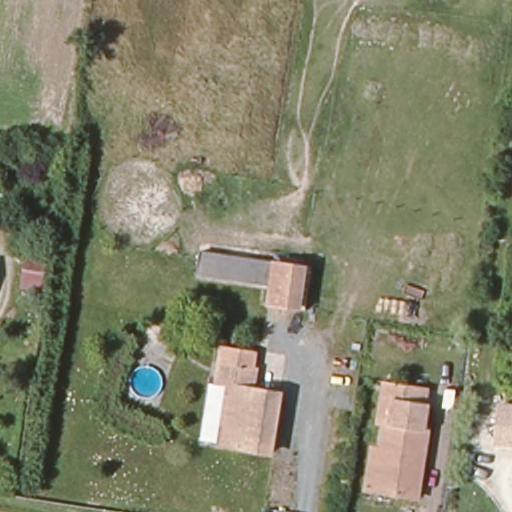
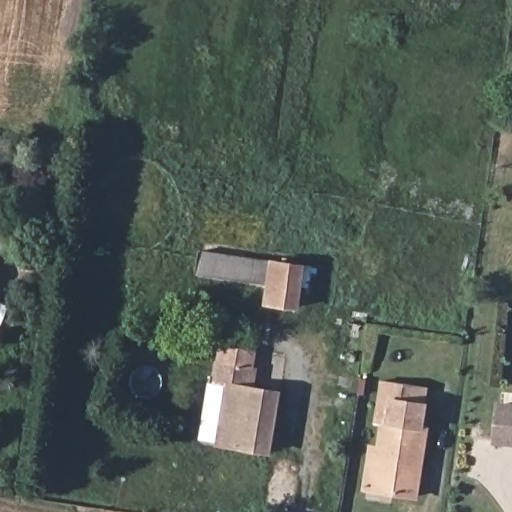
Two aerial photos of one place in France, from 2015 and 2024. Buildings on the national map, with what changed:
unchanged [(304,266),(297,309),(268,303),(270,285),(196,274),(202,251),(304,266)]
unchanged [(216,388),(223,349),(254,353),(252,371),(259,372),(257,393),(282,396),(273,456),(223,450),(208,447),(216,388)]
unchanged [(369,465),(379,466),(384,424),(374,422),(382,378),(424,384),(421,403),(426,404),(422,429),(426,429),(416,496),(375,491),(366,489),(369,465)]
unchanged [(497,442),(501,404),(512,406),(512,444),(497,442)]

